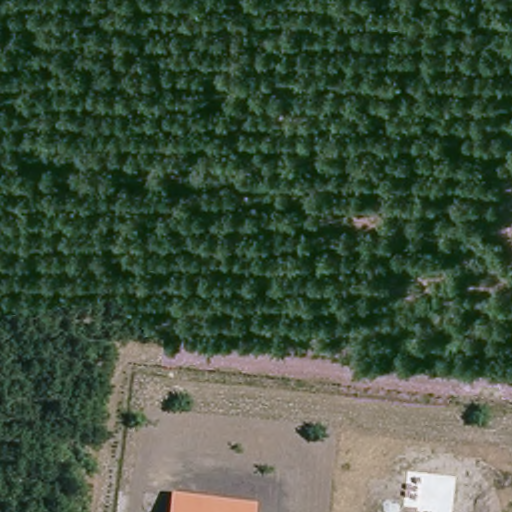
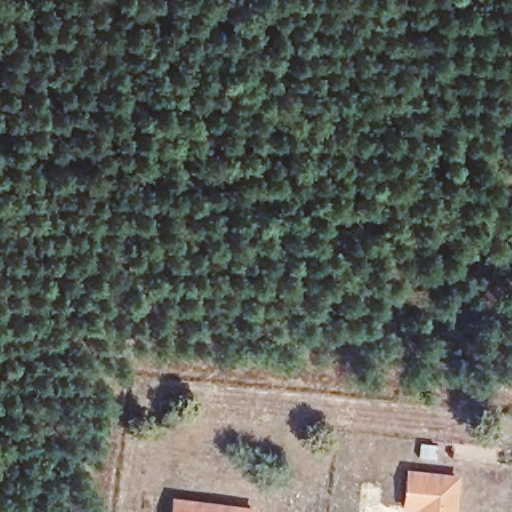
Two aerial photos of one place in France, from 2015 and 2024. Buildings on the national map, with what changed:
new [(455,512),(414,512),(414,509),(402,508),(404,467),(459,474),(455,512)]
unchanged [(255,508),(255,512),(169,512),(171,497),(255,508)]

